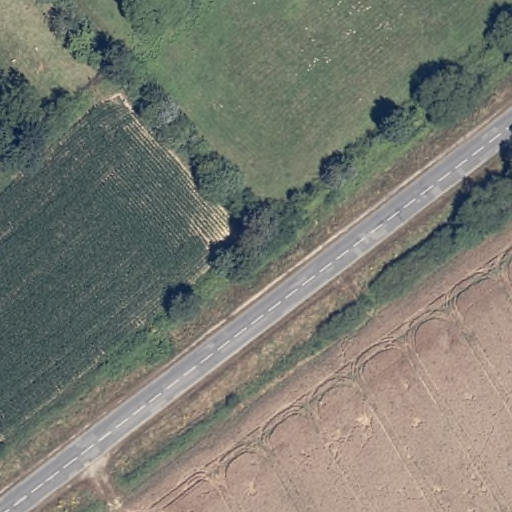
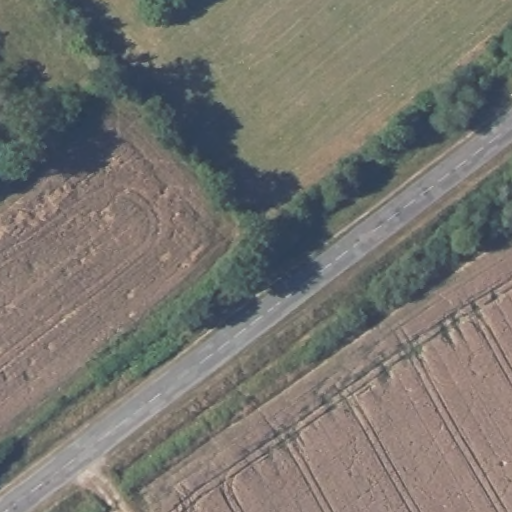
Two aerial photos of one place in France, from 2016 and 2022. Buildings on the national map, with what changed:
unchanged [(0,163),(0,152),(6,156),(0,163)]

